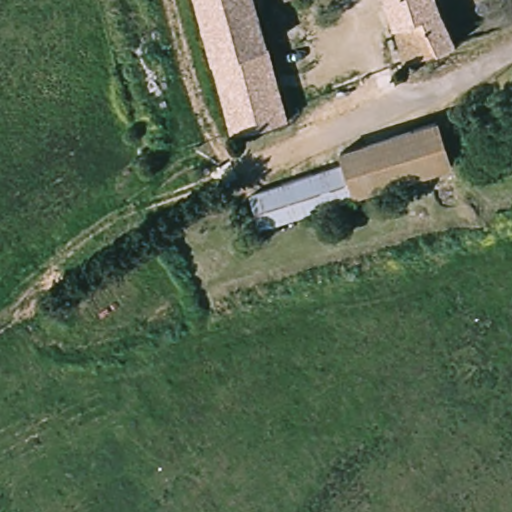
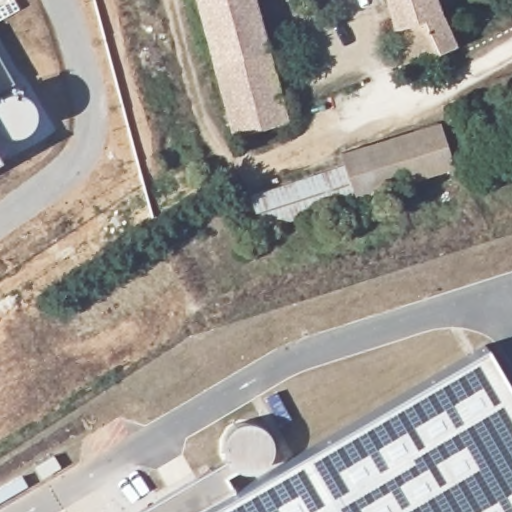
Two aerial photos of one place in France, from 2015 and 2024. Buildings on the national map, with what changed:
unchanged [(223,121),(193,0),(259,0),(284,105),(223,121)]
unchanged [(398,59),(380,0),(438,0),(452,44),(398,59)]
unchanged [(447,170),(271,218),(265,185),(359,159),(359,150),(440,129),(447,170)]
new [(226,460),(232,468),(240,473),(248,474),(253,474),(260,471),(263,473),(480,346),(512,399),(512,512),(138,512),(226,460)]

